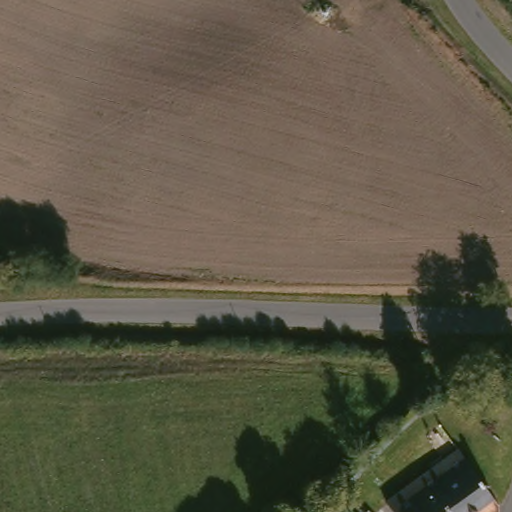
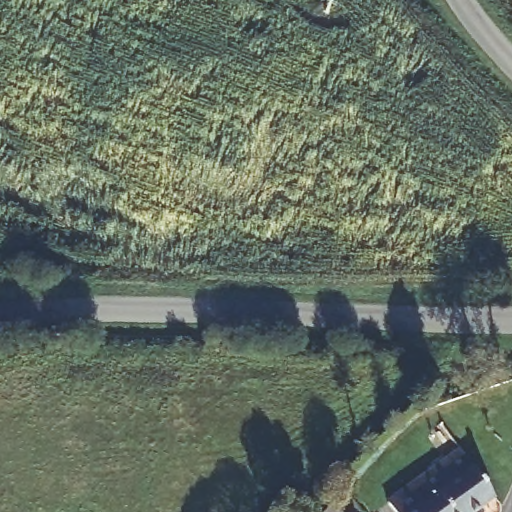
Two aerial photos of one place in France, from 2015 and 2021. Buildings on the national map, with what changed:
unchanged [(461,445),(479,464),(501,492),(475,512),(399,512),(389,497),(461,445)]
unchanged [(349,512),(328,512),(339,501),(349,512)]

